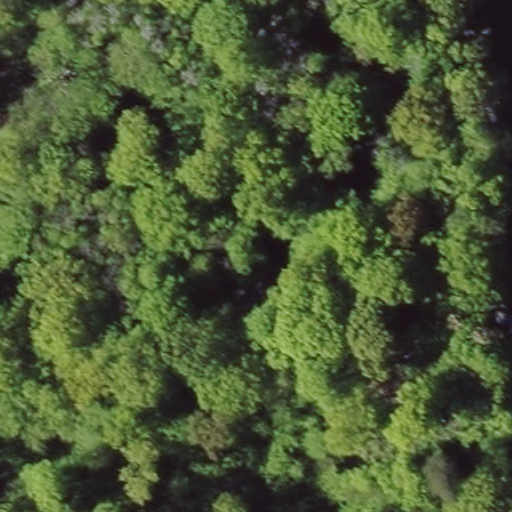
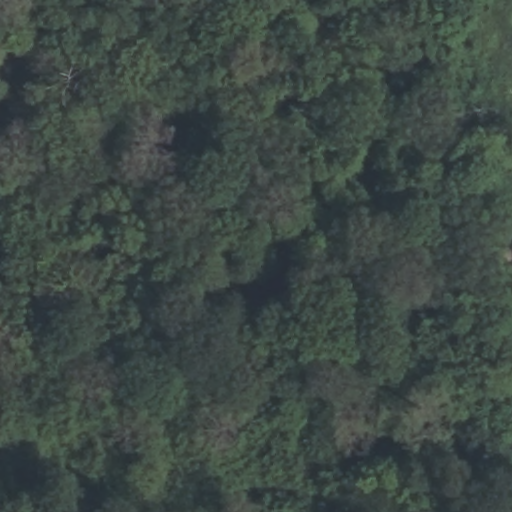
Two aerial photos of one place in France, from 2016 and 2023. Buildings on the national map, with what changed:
unchanged [(512,340),(512,380),(508,380),(510,340),(512,340)]

